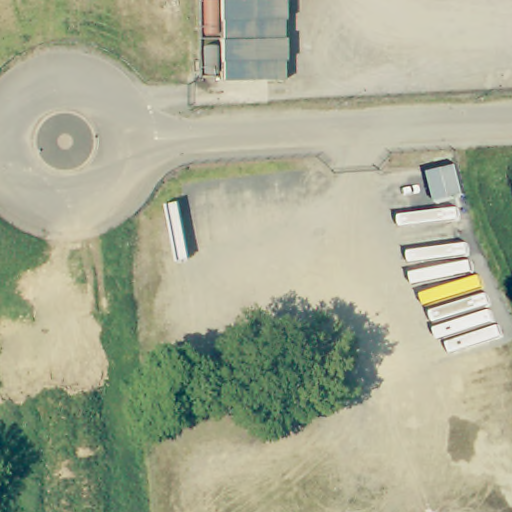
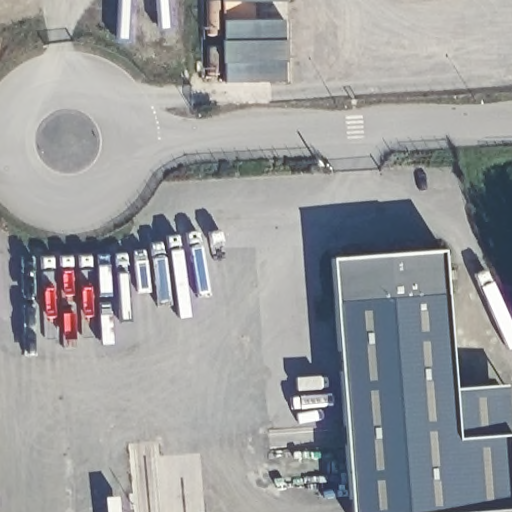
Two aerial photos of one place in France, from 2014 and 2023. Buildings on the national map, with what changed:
unchanged [(222,76),(222,0),(282,0),(282,82),(222,83),(222,76)]
new [(509,434),(512,479),(512,509),(470,512),(352,512),(333,260),(443,251),(457,438),(509,434)]

